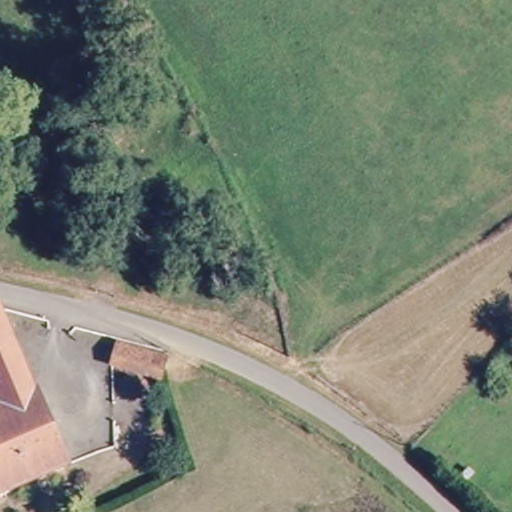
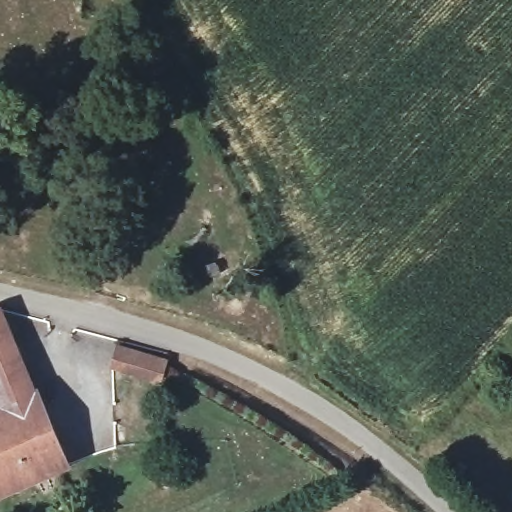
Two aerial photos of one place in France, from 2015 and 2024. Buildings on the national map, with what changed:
unchanged [(0,304),(67,464),(0,496),(0,304)]
unchanged [(156,382),(110,369),(116,344),(163,359),(156,382)]

